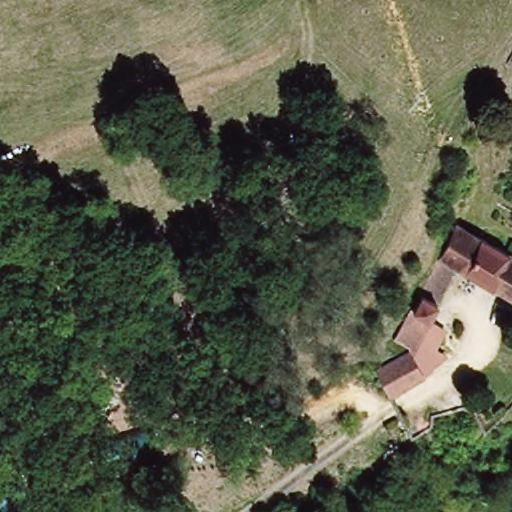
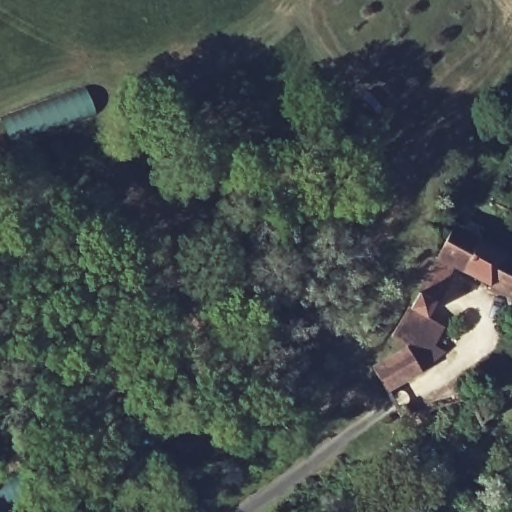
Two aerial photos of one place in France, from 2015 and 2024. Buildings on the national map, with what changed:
new [(97,112),(12,143),(2,118),(85,86),(97,112)]
unchanged [(434,259),(455,225),(482,240),(463,276),(456,272),(434,259)]
unchanged [(482,240),(512,255),(512,302),(463,276),(482,240)]
unchanged [(456,272),(411,340),(392,328),(434,259),(456,272)]
unchanged [(388,397),(373,365),(405,350),(411,340),(442,366),(426,376),(422,368),(410,373),(412,382),(388,397)]

